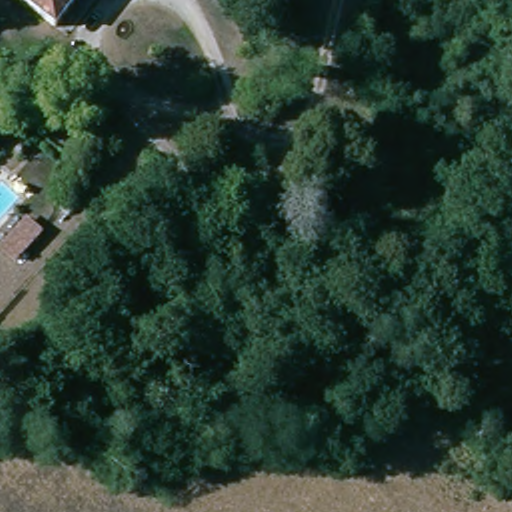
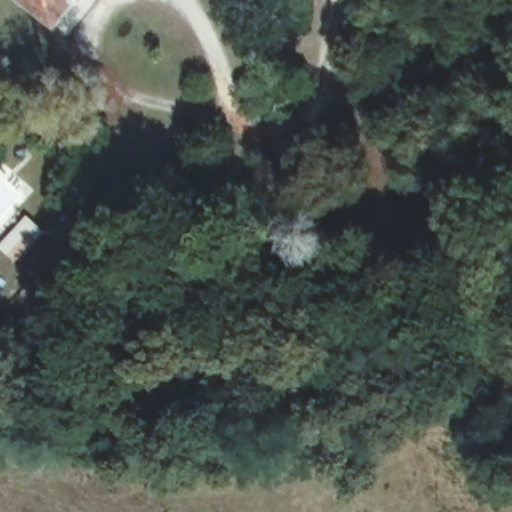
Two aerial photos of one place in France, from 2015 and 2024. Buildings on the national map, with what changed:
unchanged [(52,21),(20,0),(66,0),(52,21)]

